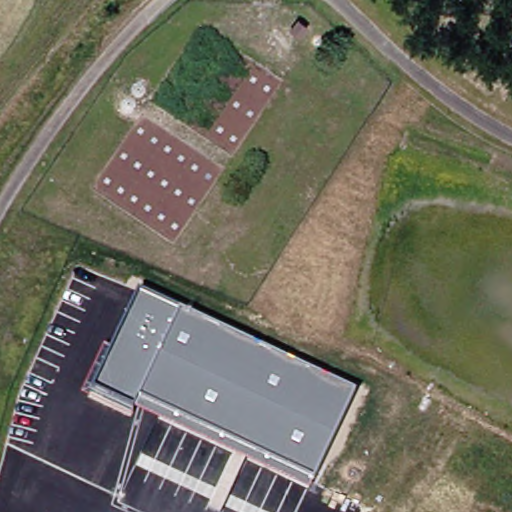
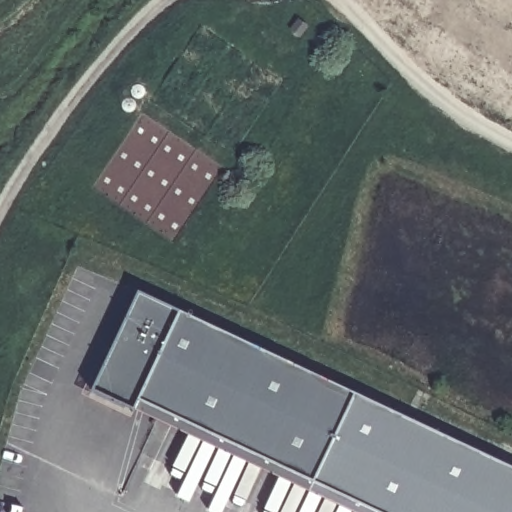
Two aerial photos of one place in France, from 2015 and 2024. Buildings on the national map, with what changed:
unchanged [(354,393),(313,481),(139,398),(132,412),(92,390),(139,292),(354,393)]
new [(132,412),(139,398),(313,481),(354,393),(512,467),(512,512),(348,512),(132,412)]

